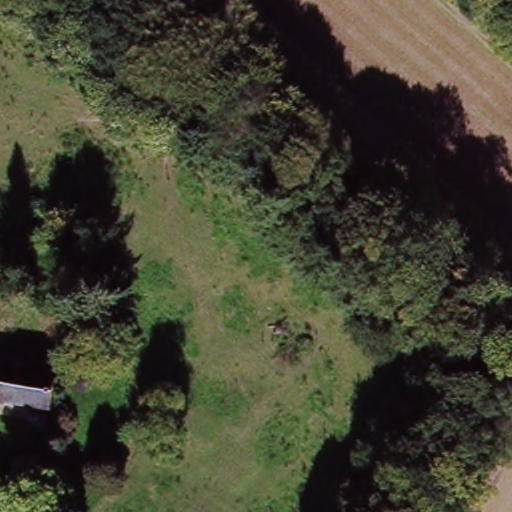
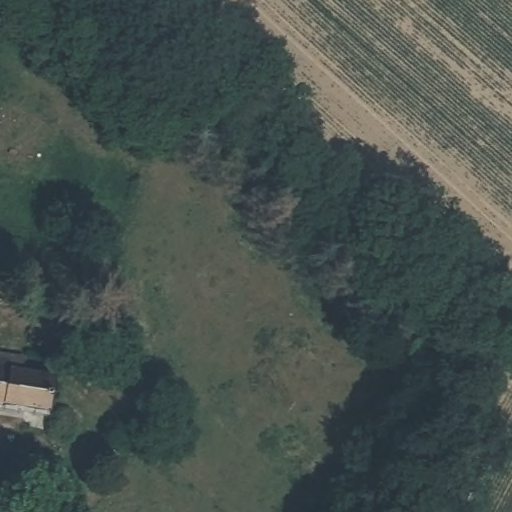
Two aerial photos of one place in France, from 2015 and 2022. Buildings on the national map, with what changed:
unchanged [(0,410),(0,354),(25,358),(22,379),(53,384),(49,416),(0,410)]

